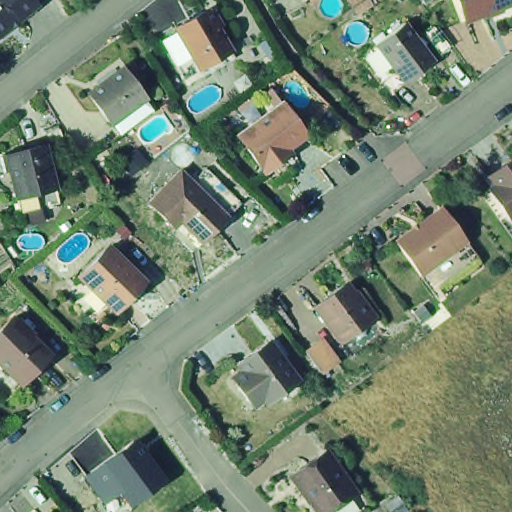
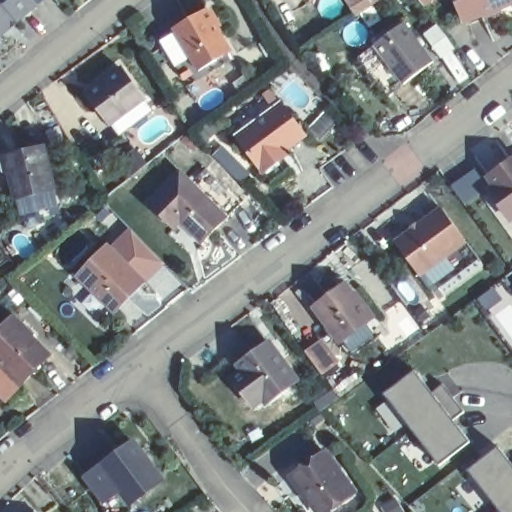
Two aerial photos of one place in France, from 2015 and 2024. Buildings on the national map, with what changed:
unchanged [(0,36),(0,0),(35,0),(40,5),(20,20),(12,26),(0,36)]
unchanged [(459,0),(512,0),(512,4),(467,20),(459,0)]
unchanged [(207,6),(232,50),(199,69),(175,26),(207,6)]
unchanged [(395,22),(425,61),(395,83),(366,44),(395,22)]
unchanged [(120,124),(111,112),(90,82),(123,57),(145,88),(128,100),(137,112),(120,124)]
unchanged [(280,152),(260,166),(233,131),(278,98),(301,130),(282,144),(285,148),(280,152)]
unchanged [(46,143),(57,187),(17,197),(5,153),(46,143)]
unchanged [(490,171),(512,156),(512,214),(511,214),(497,194),(490,185),(497,180),(490,171)]
unchanged [(223,216),(196,242),(176,221),(170,228),(143,202),(161,183),(175,169),(177,172),(223,216)]
unchanged [(443,202),(467,237),(421,270),(395,235),(443,202)]
unchanged [(135,291),(115,310),(80,275),(108,246),(140,277),(145,281),(135,291)]
unchanged [(347,283),(370,315),(339,338),(316,306),(347,283)]
unchanged [(13,316),(51,355),(24,382),(5,363),(0,358),(0,330),(13,316)]
unchanged [(317,339),(332,361),(317,372),(301,350),(317,339)]
unchanged [(244,361),(273,340),(302,381),(273,401),(268,395),(257,403),(239,377),(250,369),(244,361)]
new [(411,368),(428,390),(439,382),(460,410),(449,418),(466,440),(435,464),(380,392),(411,368)]
unchanged [(135,435),(163,473),(132,496),(104,458),(135,435)]
new [(511,466),(512,466),(512,512),(497,512),(463,468),(494,444),(511,466)]
unchanged [(355,490),(325,512),(319,512),(292,474),(326,450),(355,490)]

